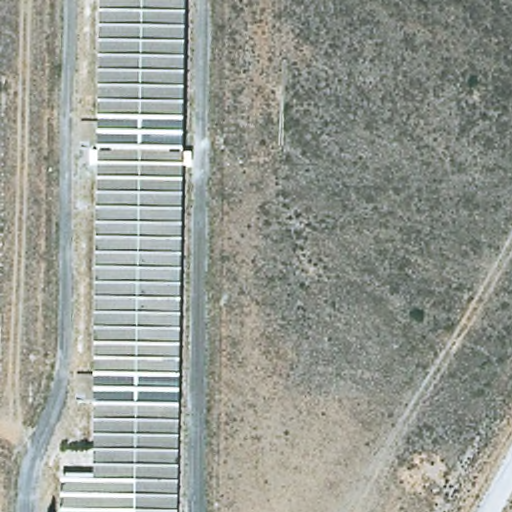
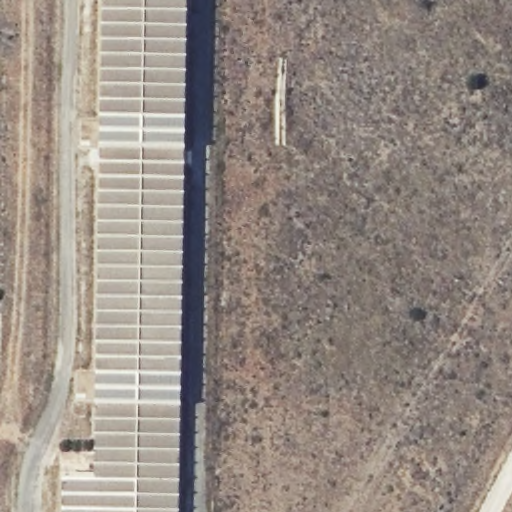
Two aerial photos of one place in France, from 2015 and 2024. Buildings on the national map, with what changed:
unchanged [(58,468),(90,468),(97,0),(184,0),(176,512),(58,512),(58,468)]

